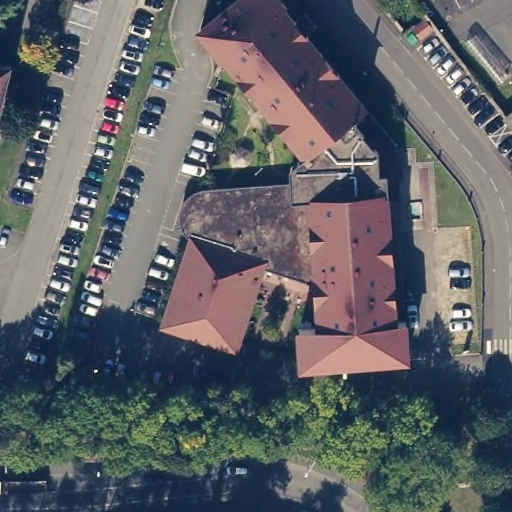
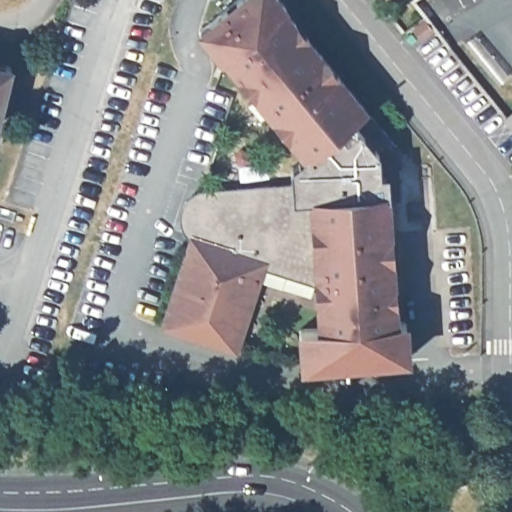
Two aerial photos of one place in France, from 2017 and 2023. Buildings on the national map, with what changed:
unchanged [(302,370),(301,327),(316,325),(312,287),(306,205),(297,203),(291,171),(302,160),(195,30),(231,0),(287,0),(369,107),(357,121),(392,167),(397,316),(407,316),(409,361),(302,370)]
unchanged [(426,19),(432,29),(421,37),(414,27),(426,19)]
unchanged [(5,90),(15,92),(1,146),(0,146),(0,63),(12,66),(5,90)]
unchanged [(505,119),(512,114),(512,127),(505,119)]
unchanged [(297,203),(306,205),(312,287),(266,272),(238,353),(157,328),(184,239),(177,221),(179,209),(185,199),(192,192),(200,189),(293,184),(297,203)]

